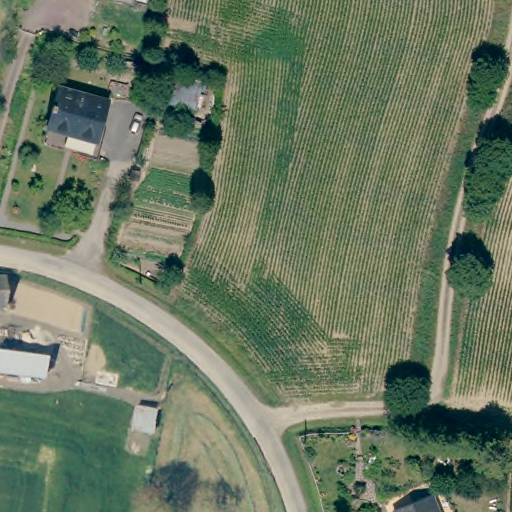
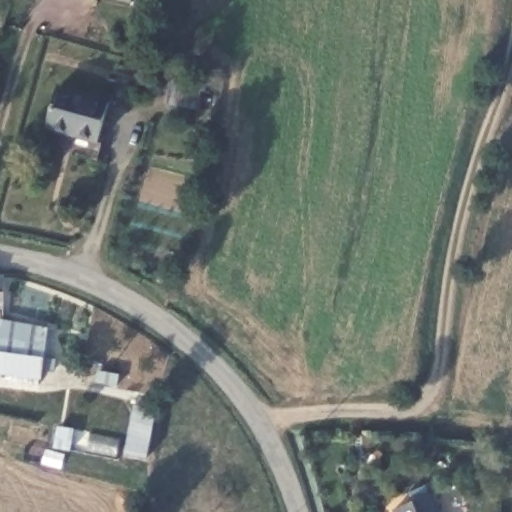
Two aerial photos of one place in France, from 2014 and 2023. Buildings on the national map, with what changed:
unchanged [(130,3),(118,0),(130,0),(130,3)]
unchanged [(149,4),(133,0),(150,0),(149,4)]
unchanged [(200,112),(166,105),(168,94),(152,90),(155,75),(205,86),(200,112)]
unchanged [(48,131),(59,90),(107,103),(96,144),(48,131)]
unchanged [(2,277),(2,311),(0,311),(0,277),(2,277)]
unchanged [(0,372),(0,352),(43,358),(41,378),(0,372)]
unchanged [(131,428),(136,405),(156,410),(150,433),(131,428)]
unchanged [(438,512),(398,512),(432,500),(438,512)]

